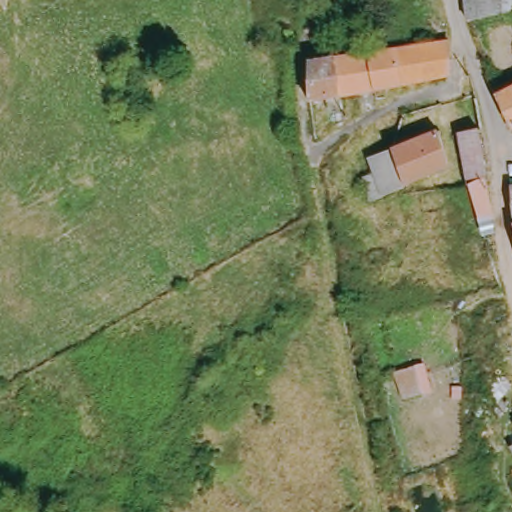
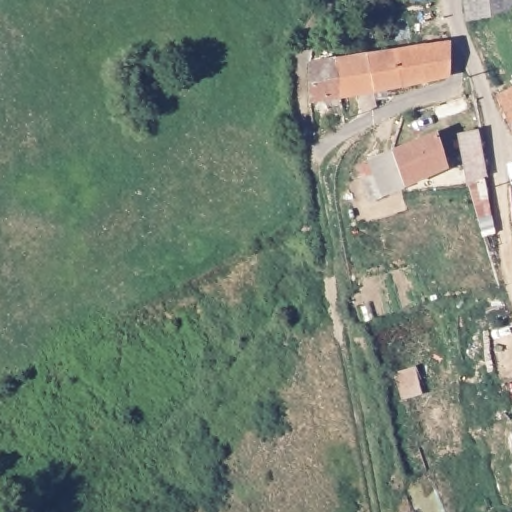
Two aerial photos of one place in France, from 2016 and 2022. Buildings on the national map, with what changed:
unchanged [(464,0),(512,0),(512,10),(467,16),(465,5),(464,0)]
unchanged [(335,59),(395,50),(426,45),(449,44),(451,76),(340,95),(335,59)]
unchanged [(310,62),(335,59),(340,95),(311,100),(310,62)]
unchanged [(489,94),(512,83),(512,130),(509,132),(489,94)]
unchanged [(451,131),(474,126),(484,168),(463,174),(451,131)]
unchanged [(432,129),(450,174),(399,189),(383,148),(432,129)]
unchanged [(399,189),(364,199),(357,175),(360,174),(357,164),(363,161),(362,157),(383,148),(399,189)]
unchanged [(464,178),(484,168),(492,224),(482,227),(464,178)]
unchanged [(336,179),(350,175),(356,201),(341,207),(336,179)]
unchanged [(504,189),(512,186),(512,221),(509,222),(504,189)]
unchanged [(512,227),(512,231),(511,227),(512,227)]

